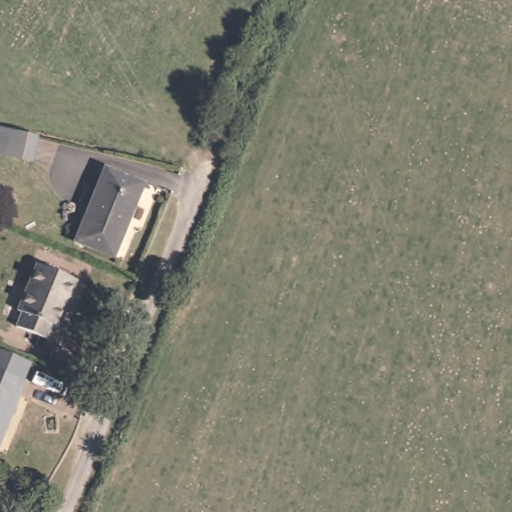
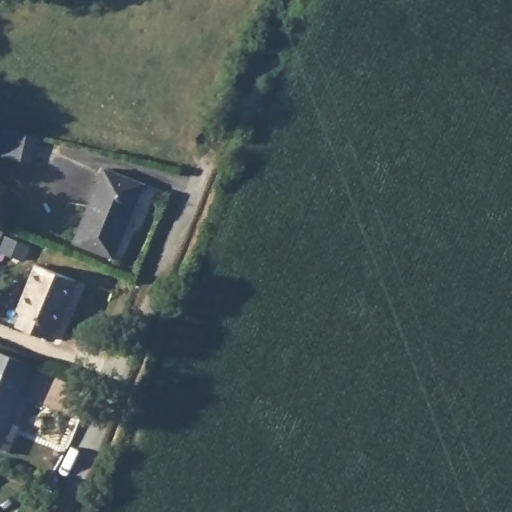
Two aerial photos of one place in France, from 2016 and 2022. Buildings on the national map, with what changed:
unchanged [(34,134),(29,158),(0,151),(0,126),(34,134)]
unchanged [(151,188),(122,262),(82,248),(110,173),(151,188)]
unchanged [(76,278),(59,324),(55,322),(50,335),(19,324),(24,311),(18,309),(35,261),(76,278)]
unchanged [(24,373),(25,374),(0,442),(0,365),(24,373)]

